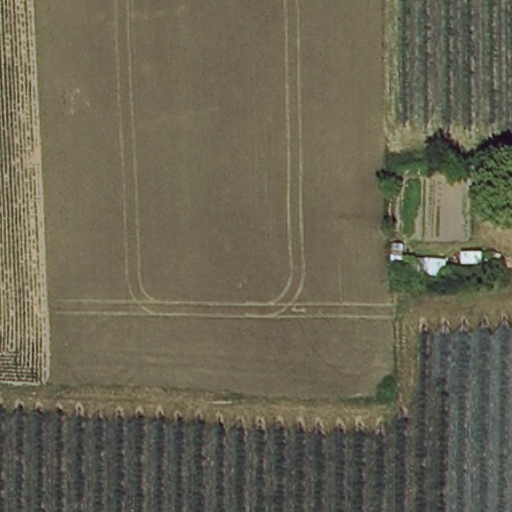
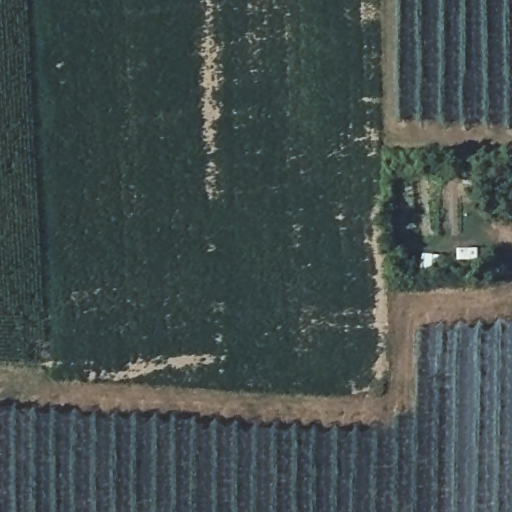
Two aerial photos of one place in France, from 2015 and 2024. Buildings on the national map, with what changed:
unchanged [(512,170),(512,201),(466,196),(467,164),(512,170)]
unchanged [(386,183),(407,183),(409,276),(388,276),(386,183)]
unchanged [(423,257),(443,259),(442,278),(423,276),(423,257)]

